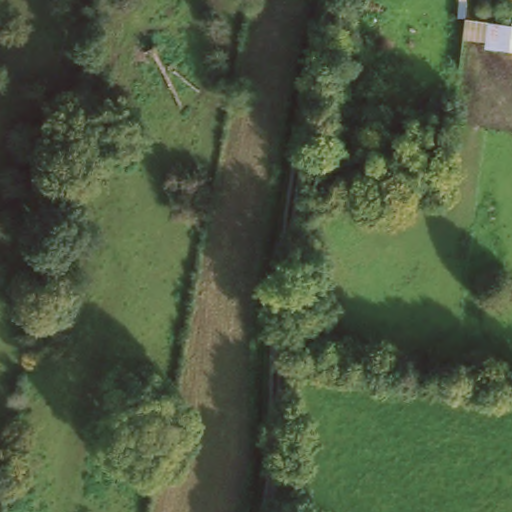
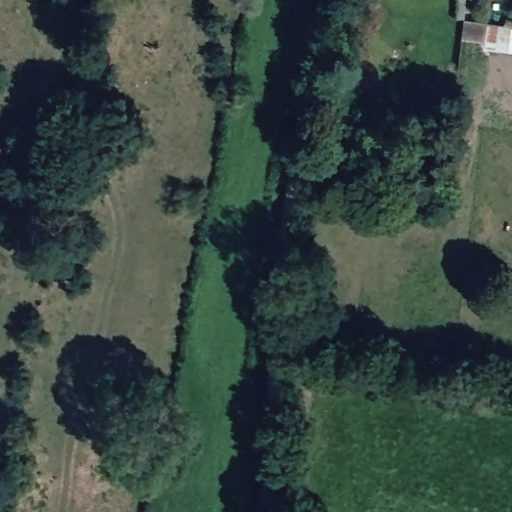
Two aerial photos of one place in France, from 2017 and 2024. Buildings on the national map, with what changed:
unchanged [(480,48),(480,26),(507,29),(506,52),(480,48)]

